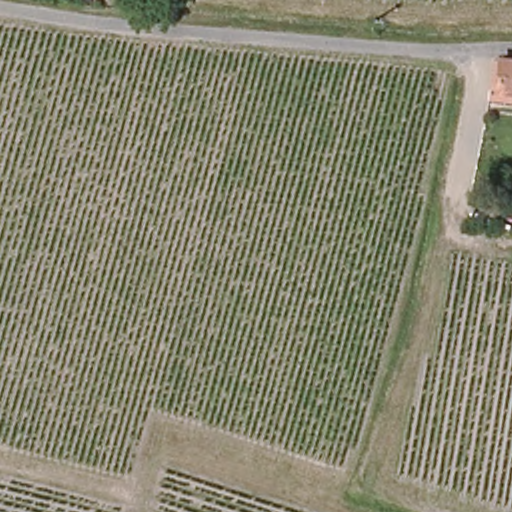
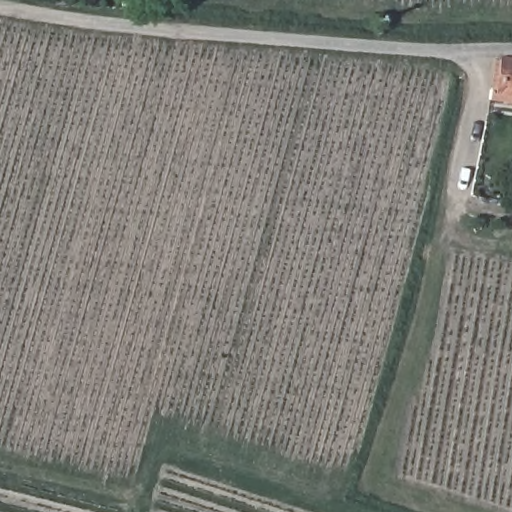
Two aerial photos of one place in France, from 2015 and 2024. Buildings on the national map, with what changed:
unchanged [(511,60),(512,61),(512,94),(508,94),(511,60)]

